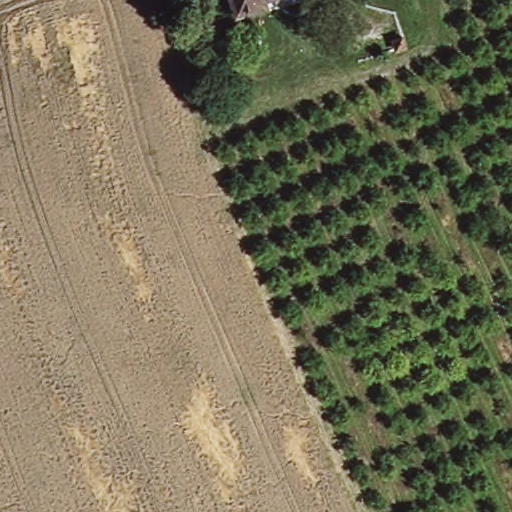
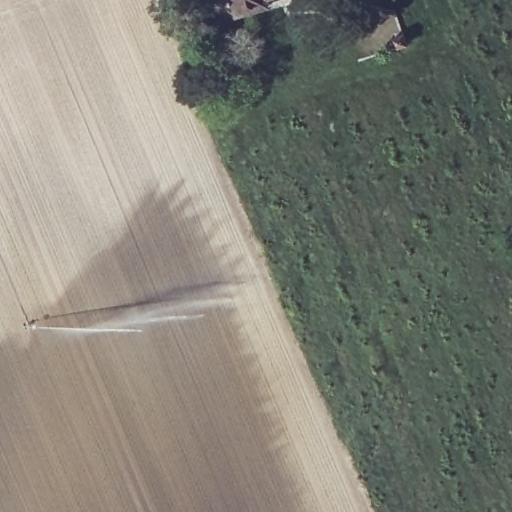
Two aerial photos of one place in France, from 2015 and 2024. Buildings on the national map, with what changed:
unchanged [(233,0),(271,0),(275,8),(242,21),(233,0)]

